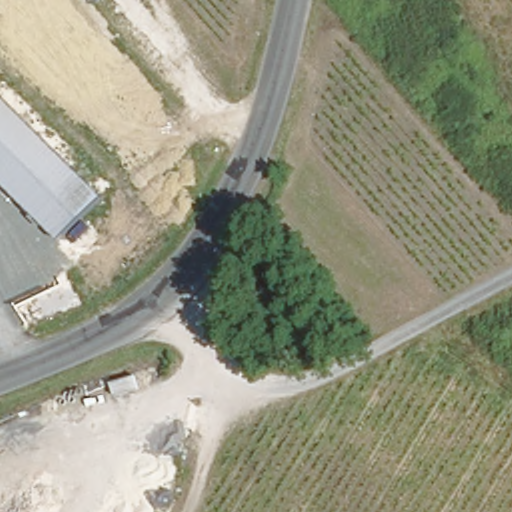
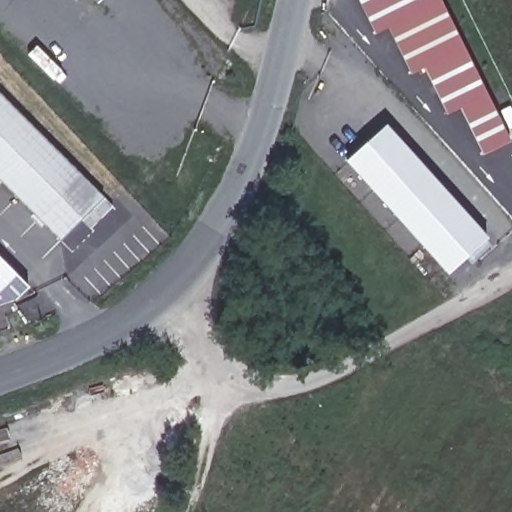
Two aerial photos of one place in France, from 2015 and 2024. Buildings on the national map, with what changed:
unchanged [(92,0),(97,0),(94,3),(92,0)]
new [(446,114),(424,68),(410,74),(387,28),(375,34),(358,0),(439,0),(509,141),(482,154),(459,108),(446,114)]
unchanged [(0,182),(0,93),(101,200),(56,243),(0,182)]
new [(390,123),(492,238),(452,273),(350,159),(390,123)]
new [(15,299),(0,304),(0,260),(26,287),(15,299)]

